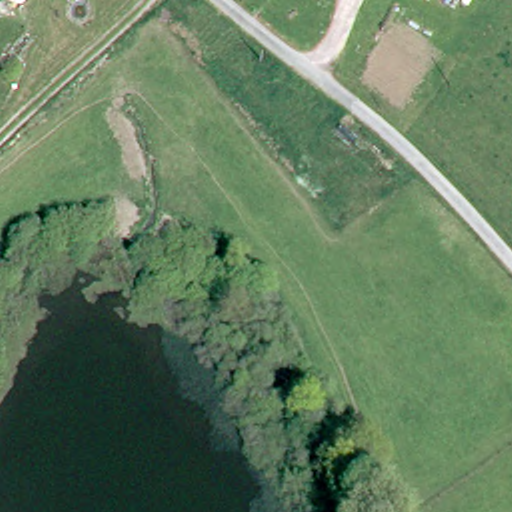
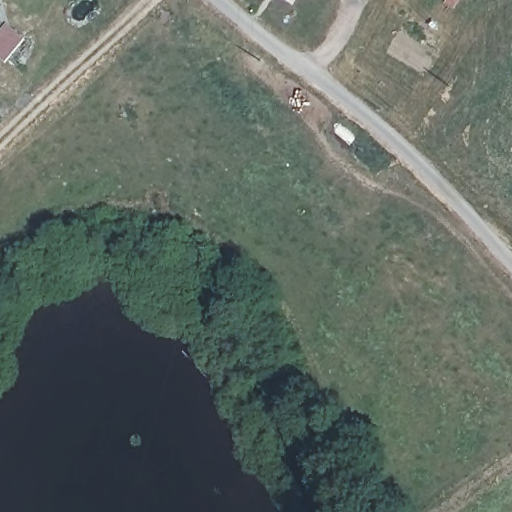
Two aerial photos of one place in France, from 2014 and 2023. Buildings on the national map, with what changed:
new [(20,40),(5,57),(0,53),(0,37),(7,29),(20,40)]

